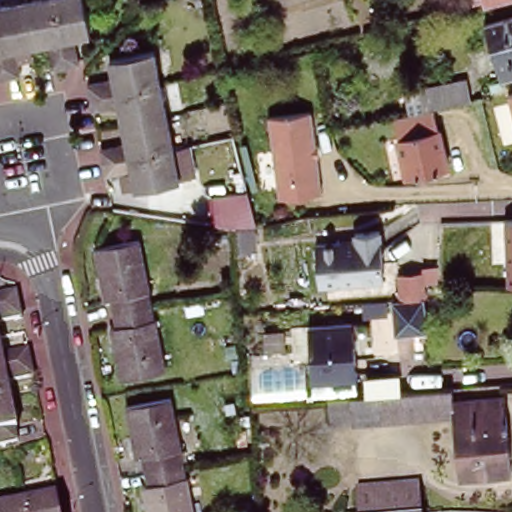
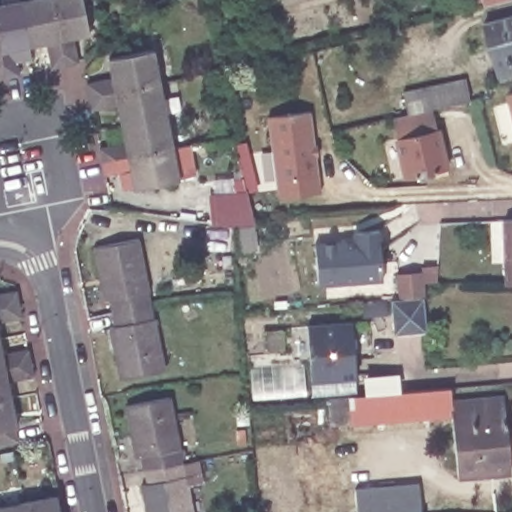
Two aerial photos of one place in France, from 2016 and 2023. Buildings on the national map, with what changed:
unchanged [(7,0),(23,0),(32,45),(16,49),(20,74),(7,76),(0,41),(0,6),(8,4),(7,0)]
unchanged [(52,0),(65,65),(49,68),(45,44),(32,45),(23,0),(26,0),(52,0)]
unchanged [(75,36),(79,61),(65,65),(52,0),(81,0),(89,34),(75,36)]
unchanged [(488,0),(510,0),(489,5),(488,0)]
unchanged [(480,23),(512,14),(512,75),(494,80),(480,23)]
unchanged [(7,76),(0,78),(0,41),(7,76)]
unchanged [(87,81),(114,76),(110,57),(155,49),(162,82),(90,97),(87,81)]
unchanged [(392,139),(387,117),(422,110),(418,90),(459,81),(463,101),(425,109),(430,129),(432,129),(442,166),(428,170),(430,177),(415,181),(412,174),(400,176),(392,139)]
unchanged [(120,105),(92,111),(90,97),(162,82),(168,115),(124,124),(120,105)]
unchanged [(512,91),(512,134),(502,94),(512,91)]
unchanged [(327,186),(285,192),(274,111),(317,106),(327,186)]
unchanged [(168,115),(175,147),(102,161),(100,146),(127,141),(124,124),(168,115)]
unchanged [(181,179),(137,187),(134,171),(105,176),(102,161),(175,147),(181,179)]
unchanged [(512,283),(507,283),(505,219),(512,218),(512,283)]
unchanged [(254,248),(234,250),(232,226),(252,222),(254,248)]
unchanged [(320,280),(318,240),(362,237),(362,229),(365,229),(385,227),(388,275),(369,276),(320,280)]
unchanged [(110,298),(104,300),(94,247),(138,240),(152,304),(112,311),(110,298)]
unchanged [(17,293),(18,308),(0,312),(0,296),(17,293)]
unchanged [(422,333),(388,336),(387,301),(420,298),(422,333)]
unchanged [(152,304),(165,367),(120,377),(110,326),(115,325),(112,311),(152,304)]
unchanged [(22,320),(0,325),(0,312),(18,308),(22,320)]
unchanged [(355,318),(360,372),(315,376),(310,322),(355,318)]
unchanged [(4,358),(28,354),(32,367),(0,374),(0,342),(4,358)]
unchanged [(34,380),(10,385),(13,402),(0,405),(0,374),(32,367),(34,380)]
unchanged [(333,430),(330,396),(452,385),(453,400),(507,396),(512,441),(512,477),(460,483),(452,422),(333,430)]
unchanged [(145,470),(143,457),(138,458),(128,406),(175,397),(185,450),(180,450),(181,464),(145,470)]
unchanged [(19,432),(14,433),(17,446),(0,450),(0,405),(13,402),(19,432)]
unchanged [(184,477),(190,477),(196,512),(148,512),(142,485),(147,483),(145,470),(181,464),(184,477)]
unchanged [(355,494),(419,488),(421,512),(357,512),(355,494)]
unchanged [(59,498),(62,512),(27,512),(26,505),(59,498)]
unchanged [(26,505),(27,512),(0,512),(0,509),(26,505)]

